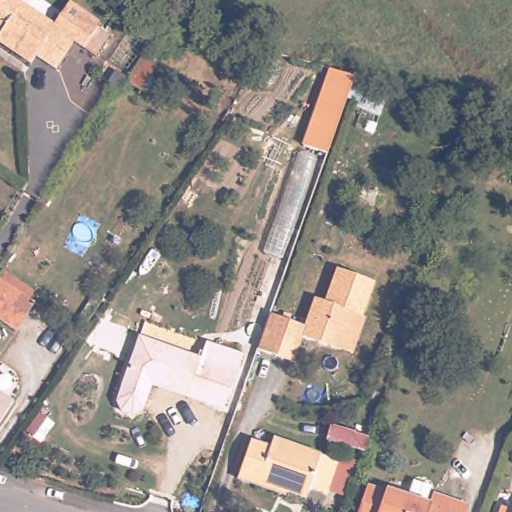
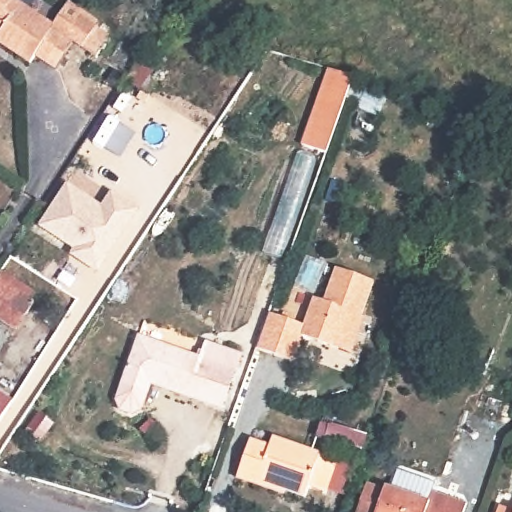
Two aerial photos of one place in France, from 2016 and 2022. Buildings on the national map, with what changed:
unchanged [(5,4),(11,8),(17,0),(22,0),(67,30),(75,18),(64,12),(70,3),(80,10),(97,22),(84,45),(66,31),(47,59),(34,50),(29,58),(0,38),(0,0),(8,0),(5,4)]
unchanged [(327,150),(313,145),(340,70),(355,75),(327,150)]
new [(99,274),(70,255),(74,249),(38,226),(70,182),(101,204),(112,190),(139,209),(99,274)]
unchanged [(351,351),(338,347),(302,334),(292,360),(257,347),(270,312),(304,324),(314,295),(324,299),(336,266),(373,280),(361,314),(363,315),(351,351)]
unchanged [(0,318),(0,271),(1,270),(32,291),(28,298),(34,302),(17,328),(0,318)]
unchanged [(221,408),(150,383),(140,411),(132,415),(119,410),(115,403),(138,337),(199,357),(205,342),(240,355),(221,408)]
unchanged [(0,419),(0,394),(12,402),(0,419)]
unchanged [(340,494),(322,488),(303,481),(300,491),(252,474),(250,479),(231,472),(244,434),(263,441),(267,432),(332,455),(352,462),(340,494)]
unchanged [(461,512),(355,512),(367,479),(383,485),(385,482),(427,497),(431,487),(466,499),(461,512)]
unchanged [(512,507),(512,512),(495,512),(498,502),(512,507)]

